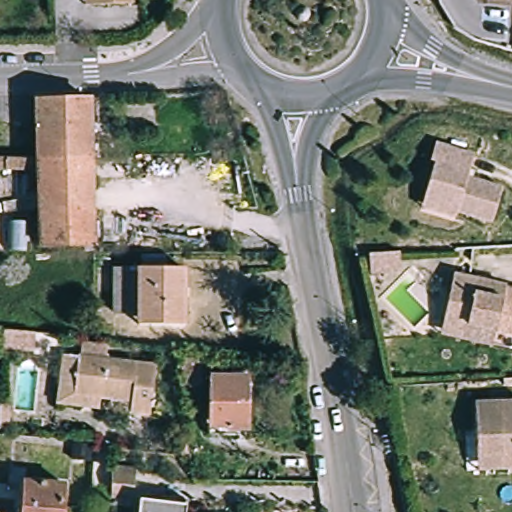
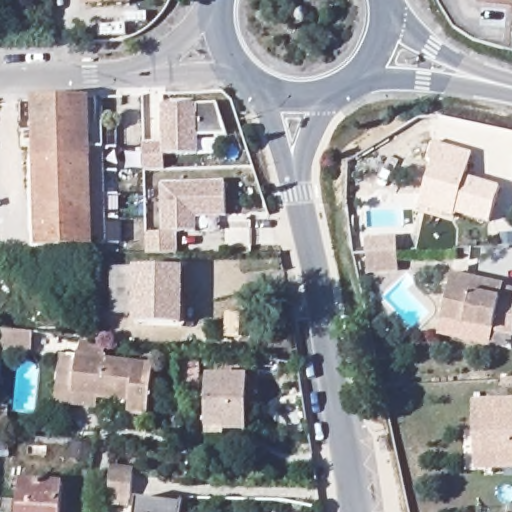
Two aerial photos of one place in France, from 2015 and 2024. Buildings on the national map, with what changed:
unchanged [(81,0),(125,0),(126,8),(82,9),(81,0)]
unchanged [(293,12),(291,9),(292,5),(294,2),(300,2),(303,5),(303,9),(301,12),(297,14),(293,12)]
unchanged [(84,250),(84,245),(39,245),(36,99),(89,99),(92,245),(90,245),(90,250),(84,250)]
new [(166,145),(167,108),(216,106),(228,137),(198,139),(199,157),(166,158),(166,179),(147,180),(147,147),(166,145)]
unchanged [(431,167),(424,166),(429,146),(466,156),(460,181),(500,192),(492,224),(461,215),(458,223),(419,211),(431,167)]
new [(168,236),(167,187),(229,186),(230,219),(199,219),(199,235),(179,235),(180,257),(153,258),(152,235),(168,236)]
unchanged [(394,245),(396,245),(397,266),(364,268),(363,247),(394,245)]
unchanged [(131,328),(132,319),(106,316),(107,297),(93,296),(94,269),(135,271),(182,271),(180,329),(131,328)]
unchanged [(437,335),(441,319),(452,274),(503,287),(502,294),(512,296),(512,335),(492,331),(489,346),(437,335)]
unchanged [(31,348),(0,345),(0,326),(32,330),(31,348)]
unchanged [(180,357),(198,357),(198,365),(198,386),(180,386),(180,357)]
unchanged [(92,413),(52,408),(58,359),(73,361),(69,397),(94,400),(92,413)]
unchanged [(73,361),(150,370),(144,416),(125,414),(126,402),(94,398),(94,400),(69,397),(73,361)]
unchanged [(206,435),(206,425),(206,376),(246,377),(246,427),(236,426),(236,436),(206,435)]
unchanged [(4,428),(0,428),(0,404),(6,405),(4,428)]
unchanged [(475,472),(475,456),(473,406),(512,406),(512,469),(475,472)]
unchanged [(113,496),(113,476),(113,468),(140,469),(140,477),(139,497),(113,496)]
unchanged [(62,482),(60,512),(17,512),(20,480),(62,482)]
unchanged [(184,509),(184,512),(136,512),(137,504),(184,509)]

